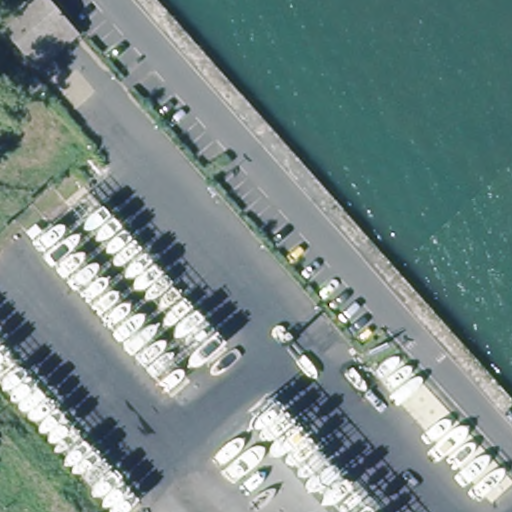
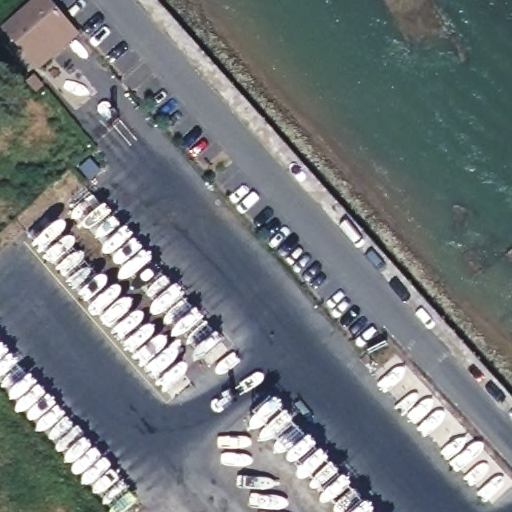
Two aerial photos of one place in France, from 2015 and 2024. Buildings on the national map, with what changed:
unchanged [(37,69),(29,61),(2,31),(35,0),(41,0),(62,23),(74,36),(37,69)]

